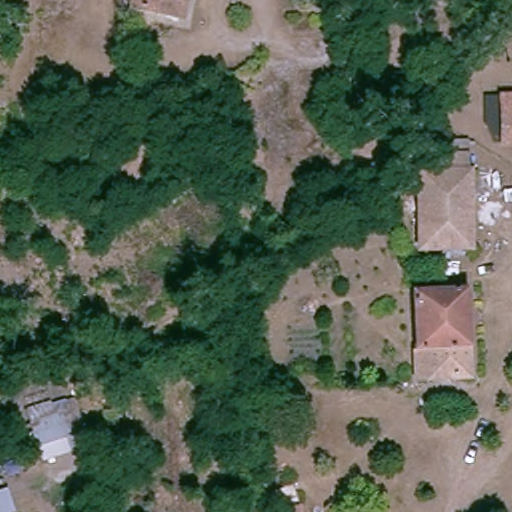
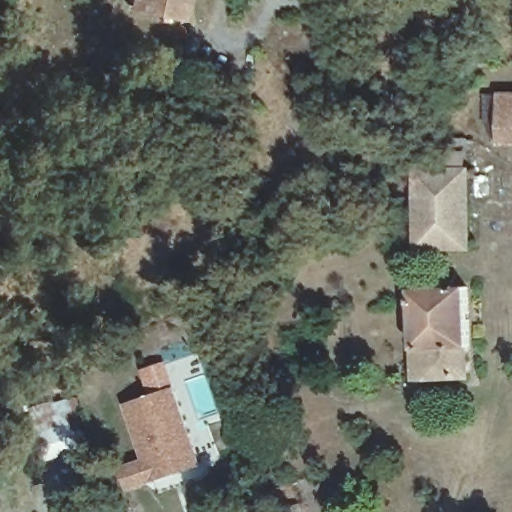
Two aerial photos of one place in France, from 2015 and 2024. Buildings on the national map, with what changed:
unchanged [(137,0),(184,0),(182,10),(137,0)]
unchanged [(512,95),(512,137),(508,137),(508,95),(512,95)]
unchanged [(437,150),(474,149),(473,167),(473,242),(425,244),(423,168),(438,167),(437,150)]
unchanged [(418,288),(468,285),(475,371),(422,374),(418,288)]
new [(176,385),(202,464),(129,491),(121,466),(143,458),(125,404),(176,385)]
unchanged [(26,408),(51,400),(52,403),(75,397),(90,444),(42,460),(26,408)]
unchanged [(8,488),(16,512),(15,512),(0,512),(0,490),(8,488)]

